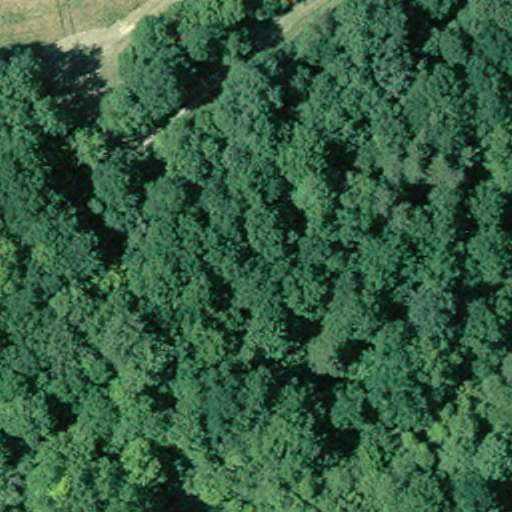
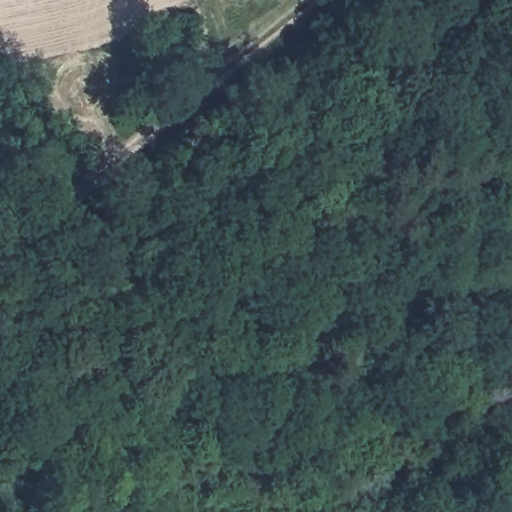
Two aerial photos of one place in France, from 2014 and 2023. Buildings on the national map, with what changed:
unchanged [(329,379),(324,368),(369,345),(374,355),(329,379)]

